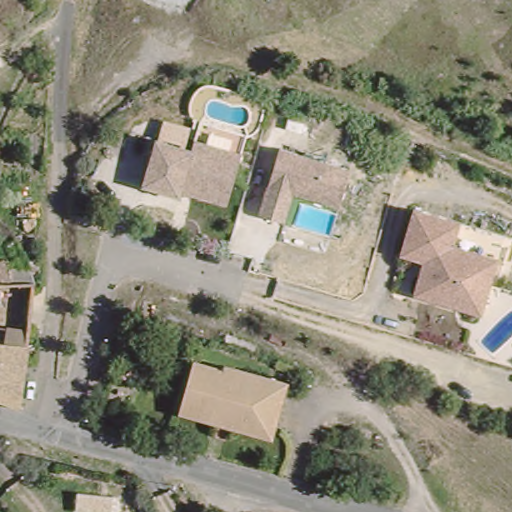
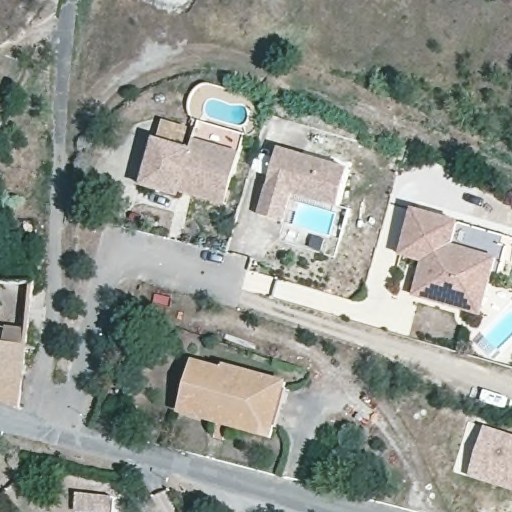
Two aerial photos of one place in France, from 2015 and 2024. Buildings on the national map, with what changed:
unchanged [(153,133),(186,141),(188,134),(197,116),(246,127),(240,150),(225,201),(179,186),(177,192),(140,182),(153,133)]
unchanged [(260,181),(266,185),(277,150),(347,170),(335,209),(291,198),(282,227),(250,215),(260,181)]
unchanged [(410,213),(454,225),(509,240),(496,284),(488,312),(482,311),(480,315),(412,296),(419,265),(399,257),(410,213)]
unchanged [(32,287),(22,285),(7,285),(0,284),(0,264),(23,266),(23,270),(30,271),(32,271),(32,287)]
unchanged [(2,324),(0,324),(0,284),(7,285),(2,324)]
unchanged [(2,327),(27,328),(21,405),(0,400),(0,343),(2,327)]
unchanged [(225,365),(280,377),(268,420),(217,408),(216,414),(182,406),(194,360),(225,365)]
unchanged [(225,361),(287,375),(272,433),(215,420),(216,414),(217,408),(268,420),(280,377),(225,365),(225,361)]
new [(512,489),(470,475),(485,425),(512,434),(512,489)]

